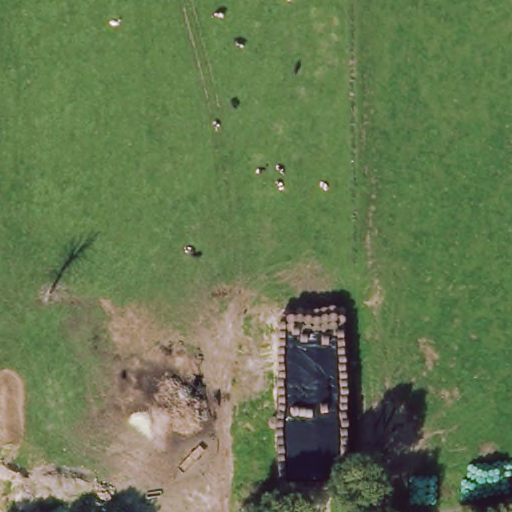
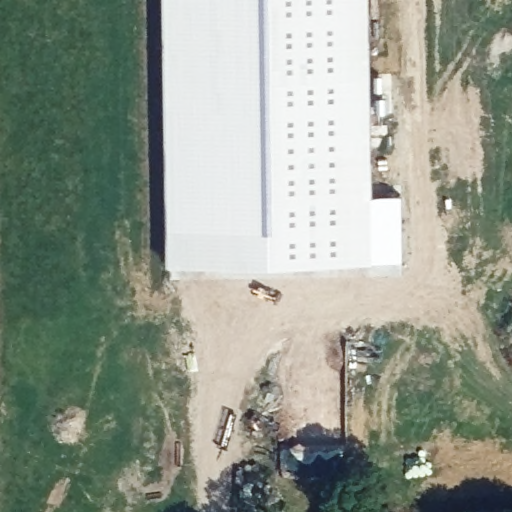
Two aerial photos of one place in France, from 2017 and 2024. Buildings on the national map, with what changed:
new [(164,0),(370,0),(374,195),(403,194),(403,261),(169,265),(164,0)]

